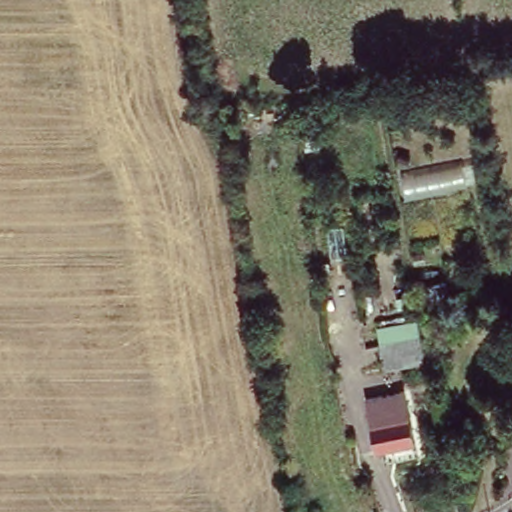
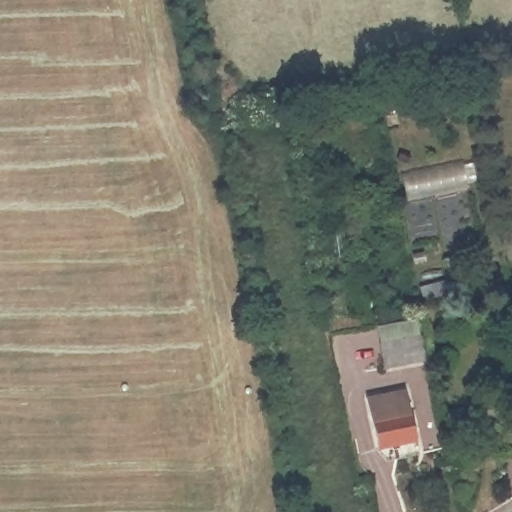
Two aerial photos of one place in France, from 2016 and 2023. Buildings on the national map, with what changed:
unchanged [(386,365),(386,362),(384,355),(404,351),(423,347),(426,357),(386,365)]
unchanged [(406,387),(417,440),(378,448),(367,396),(406,387)]

